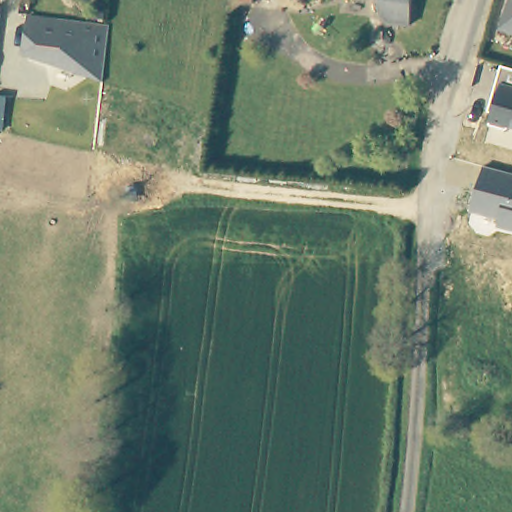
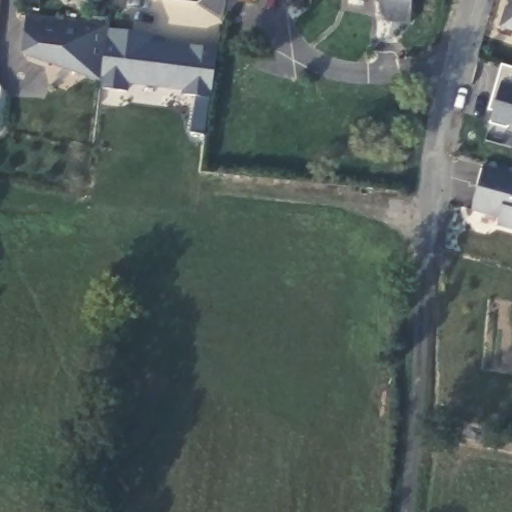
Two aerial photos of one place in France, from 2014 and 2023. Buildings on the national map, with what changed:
unchanged [(264,5),(247,4),(248,0),(265,0),(264,5)]
unchanged [(417,25),(399,24),(388,12),(388,2),(376,0),(420,0),(417,25)]
unchanged [(512,0),(512,30),(502,26),(512,0)]
unchanged [(22,54),(26,14),(109,25),(101,83),(22,54)]
new [(153,34),(153,39),(219,48),(206,134),(191,132),(198,96),(184,95),(184,91),(129,85),(129,92),(101,88),(101,83),(108,28),(153,34)]
unchanged [(493,113),(490,112),(503,65),(512,68),(512,128),(491,122),(493,113)]
unchanged [(500,217),(473,210),(484,166),(512,173),(512,231),(499,227),(500,217)]

